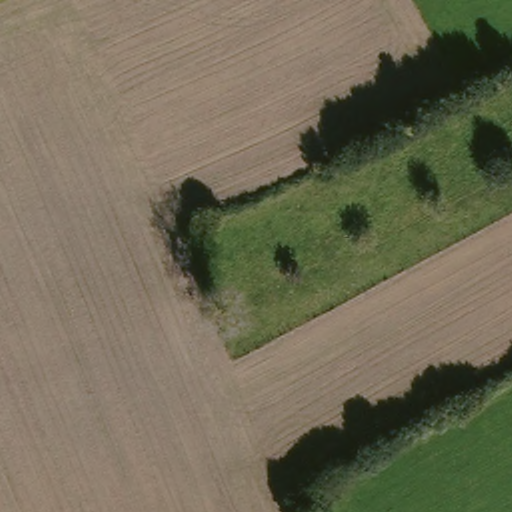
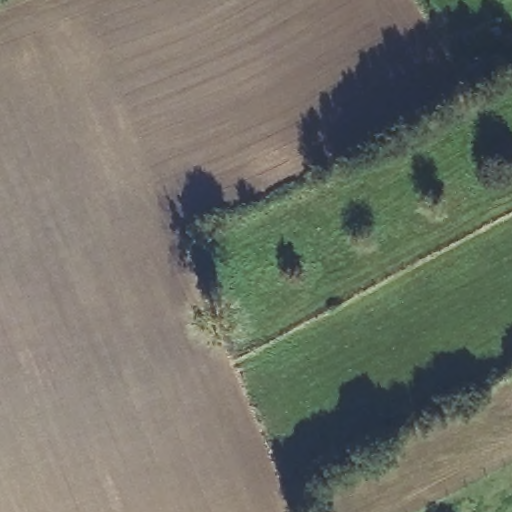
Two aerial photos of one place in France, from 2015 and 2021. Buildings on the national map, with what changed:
[]

